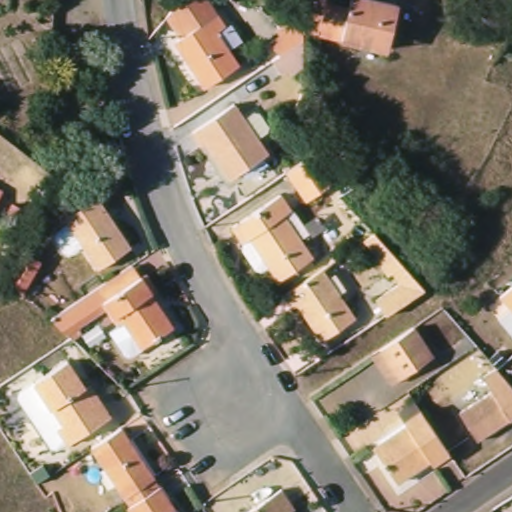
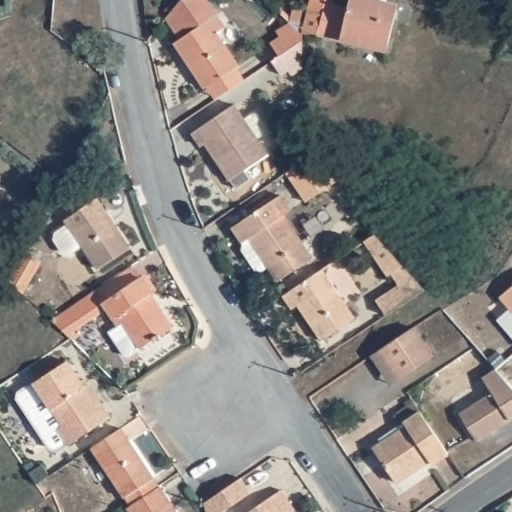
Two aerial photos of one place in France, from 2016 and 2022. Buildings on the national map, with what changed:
unchanged [(237,60),(203,83),(173,37),(182,31),(171,14),(185,1),(188,0),(210,0),(216,8),(223,20),(213,26),(237,60)]
unchanged [(368,41),(367,49),(346,45),(346,43),(323,37),(322,39),(307,36),(315,0),(332,0),(330,9),(352,15),(355,1),(401,10),(393,45),(368,41)]
unchanged [(276,64),(281,61),(273,48),(282,42),(280,37),(296,26),(302,31),(307,36),(308,43),(312,62),(312,66),(312,69),(296,80),(292,75),(286,79),(276,64)]
unchanged [(204,144),(193,129),(236,103),(247,121),(257,114),(263,116),(270,127),(270,134),(260,140),(269,155),(232,179),(208,141),(204,144)]
unchanged [(87,134),(94,137),(83,160),(76,156),(87,134)]
unchanged [(307,200),(287,172),(310,157),(339,179),(307,200)]
unchanged [(7,194),(0,206),(0,190),(7,194)]
unchanged [(268,264),(260,269),(254,268),(242,249),(243,244),(234,228),(281,198),(292,215),(285,219),(311,258),(278,279),(268,264)]
unchanged [(102,269),(69,220),(100,199),(133,249),(102,269)]
unchanged [(378,234),(407,268),(426,289),(392,313),(381,298),(403,282),(396,271),(392,274),(368,241),(378,234)]
unchanged [(38,261),(21,292),(6,279),(22,251),(38,261)]
unchanged [(150,295),(172,328),(128,357),(122,354),(109,334),(117,328),(106,309),(64,336),(46,320),(106,281),(132,263),(141,277),(152,294),(150,295)]
unchanged [(356,315),(322,338),(298,304),(293,308),(283,294),(323,267),(356,315)]
unchanged [(512,290),(512,310),(502,298),(512,290)]
unchanged [(371,357),(377,351),(410,329),(431,357),(398,380),(391,385),(371,357)]
unchanged [(41,384),(70,364),(97,405),(101,403),(112,419),(72,445),(62,431),(34,388),(41,384)]
unchanged [(461,416),(494,393),(483,379),(497,369),(501,375),(512,387),(512,420),(480,443),(461,416)]
unchanged [(452,458),(435,470),(432,465),(398,488),(377,454),(385,449),(382,445),(407,428),(400,418),(417,407),(452,458)]
unchanged [(162,484),(132,504),(92,446),(122,426),(162,484)]
new [(240,476),(250,491),(220,512),(206,512),(202,502),(240,476)]
unchanged [(132,504),(162,484),(163,484),(182,512),(137,512),(132,504)]
unchanged [(297,509),(292,512),(249,512),(282,488),(297,509)]

